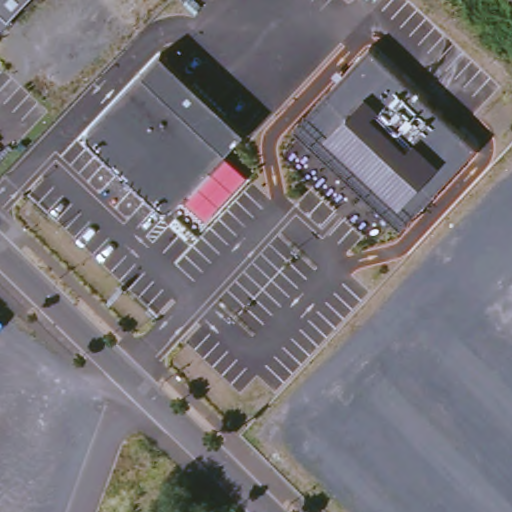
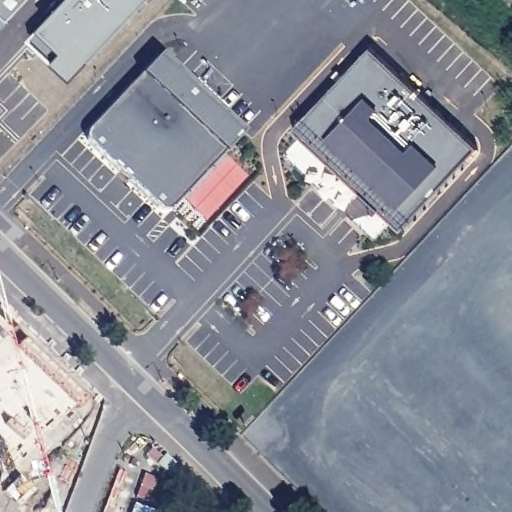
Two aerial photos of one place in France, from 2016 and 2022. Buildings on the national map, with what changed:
unchanged [(0,26),(0,25),(0,0),(25,0),(0,26)]
new [(68,0),(148,0),(73,80),(42,50),(30,40),(42,27),(68,0)]
unchanged [(476,150),(402,232),(292,131),(369,50),(476,150)]
unchanged [(245,178),(204,220),(182,197),(170,210),(159,210),(86,141),(89,132),(143,75),(161,56),(243,132),(224,152),(245,178)]

